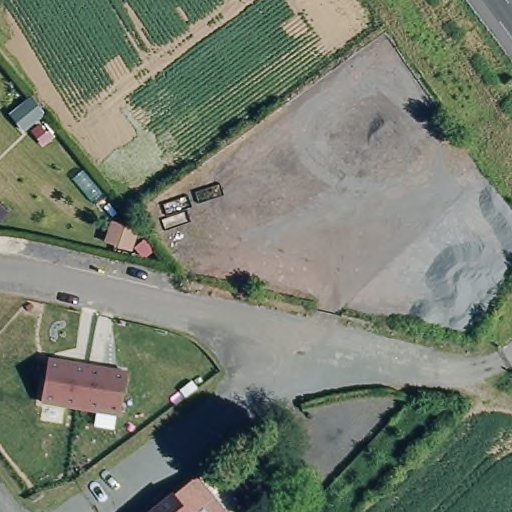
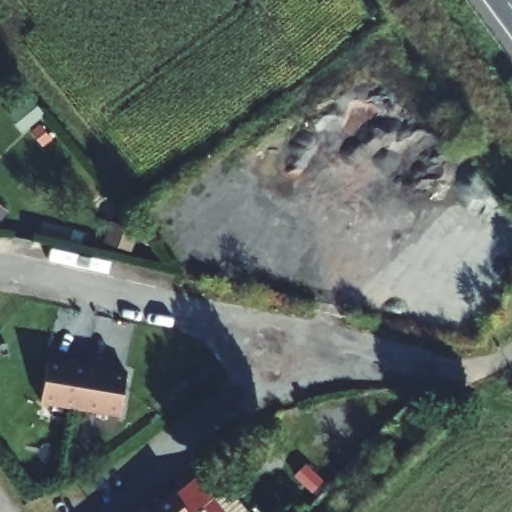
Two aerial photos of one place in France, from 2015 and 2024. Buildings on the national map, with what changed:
unchanged [(117,419),(78,411),(38,404),(46,362),(86,369),(125,376),(117,419)]
unchanged [(212,457),(251,512),(219,512),(190,473),(212,457)]
unchanged [(190,473),(219,512),(191,512),(170,488),(190,473)]
unchanged [(146,507),(141,501),(151,494),(155,500),(170,488),(191,512),(140,512),(146,507)]

